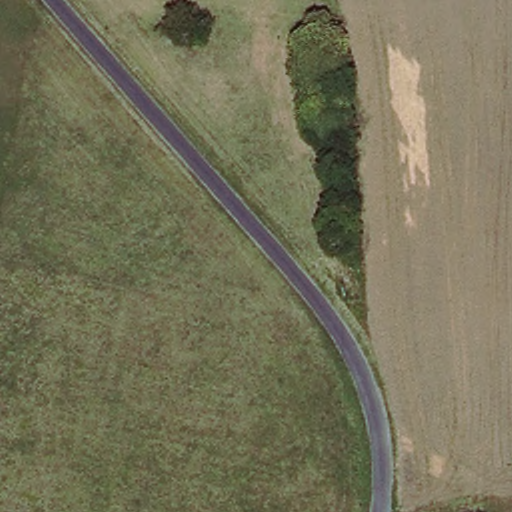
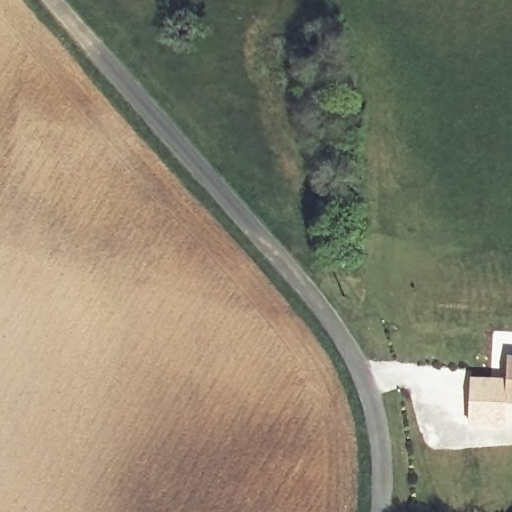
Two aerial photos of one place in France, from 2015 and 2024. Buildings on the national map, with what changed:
new [(512,356),(512,404),(504,404),(503,423),(468,423),(471,380),(506,381),(507,356),(512,356)]

